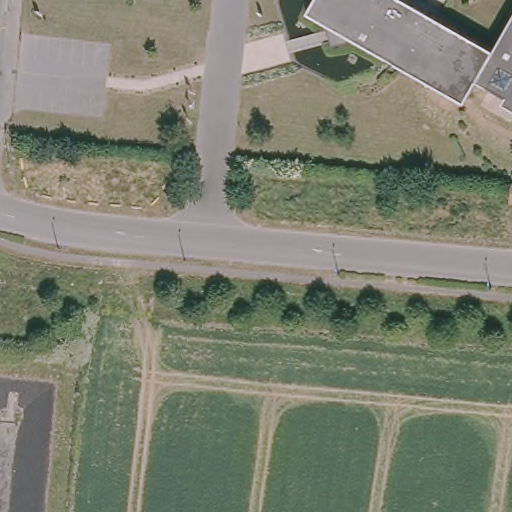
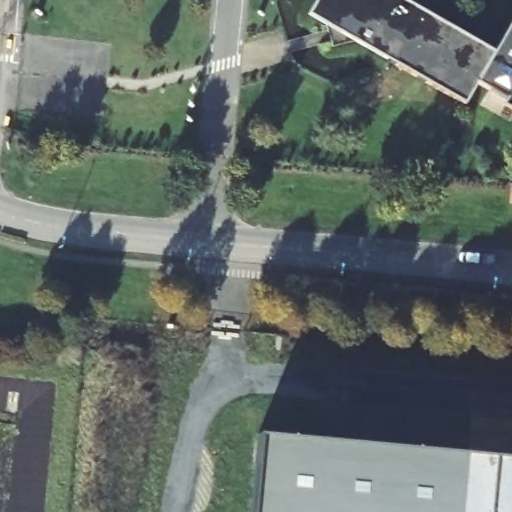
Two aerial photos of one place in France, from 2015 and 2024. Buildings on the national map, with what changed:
unchanged [(497,54),(512,28),(512,112),(505,108),(509,101),(479,84),(467,105),(358,41),(335,46),(329,24),(311,13),(319,0),(405,0),(497,54)]
unchanged [(512,186),(512,204),(508,204),(510,186),(512,186)]
new [(512,458),(512,512),(249,512),(256,435),(512,458)]

